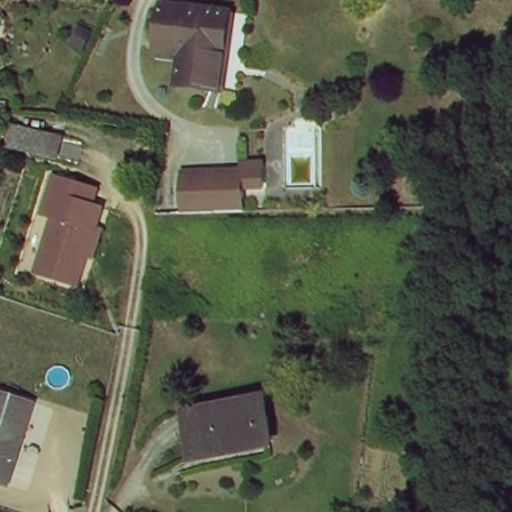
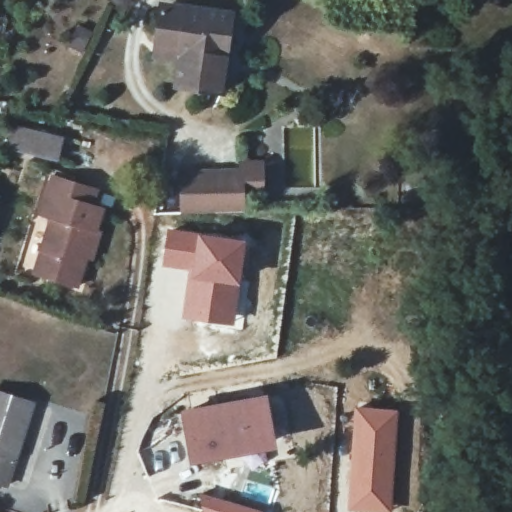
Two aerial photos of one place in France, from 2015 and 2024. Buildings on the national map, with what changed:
unchanged [(190,11),(191,6),(235,13),(223,91),(178,84),(182,58),(158,53),(160,39),(164,6),(190,11)]
unchanged [(50,151),(8,141),(12,123),(55,132),(50,151)]
unchanged [(180,209),(179,169),(239,166),(240,159),(267,158),(267,192),(253,193),(252,205),(180,209)]
unchanged [(49,214),(41,210),(53,173),(100,186),(97,201),(107,204),(93,254),(87,257),(78,284),(30,270),(49,214)]
new [(166,226),(198,230),(190,270),(187,270),(161,267),(166,226)]
new [(187,270),(190,270),(198,230),(246,238),(240,284),(186,277),(187,270)]
new [(186,277),(240,284),(234,325),(180,318),(186,277)]
unchanged [(11,483),(0,480),(0,385),(38,396),(11,483)]
unchanged [(275,442),(238,448),(238,457),(201,463),(193,413),(266,399),(275,442)]
new [(354,406),(399,408),(392,512),(376,512),(346,510),(354,406)]

